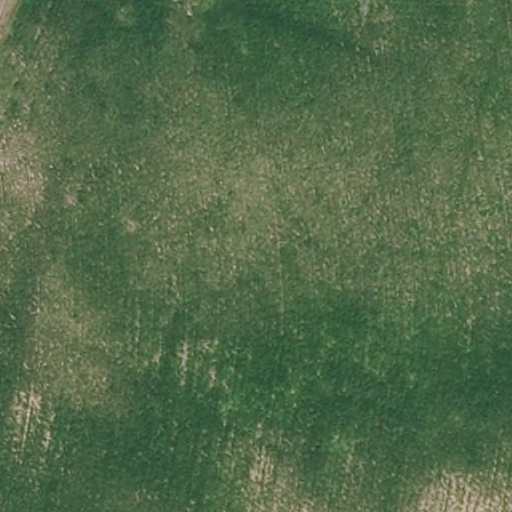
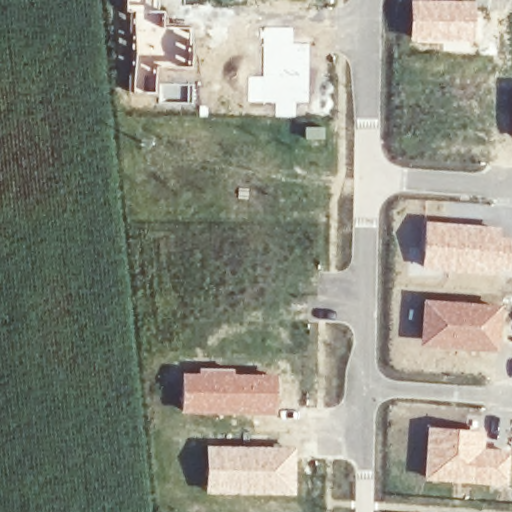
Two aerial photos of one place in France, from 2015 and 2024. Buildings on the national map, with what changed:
new [(152,66),(151,93),(129,92),(131,52),(130,12),(121,11),(122,0),(153,0),(152,10),(159,11),(160,11),(159,27),(185,28),(187,67),(152,66)]
new [(407,40),(408,0),(440,0),(472,0),(470,42),(407,40)]
new [(306,102),(293,102),(293,116),(274,115),(274,101),(261,100),(262,28),(290,28),(290,44),(306,44),(306,102)]
new [(491,269),(491,276),(420,268),(423,221),(499,227),(498,237),(512,238),(512,252),(510,271),(491,269)]
new [(416,345),(420,299),(498,306),(495,352),(416,345)]
new [(272,415),(180,413),(180,373),(198,373),(198,368),(231,369),(231,374),(275,374),(272,415)]
new [(508,450),(505,486),(421,480),(425,426),(484,432),(482,448),(508,450)]
new [(293,495),(204,493),(205,446),(295,447),(293,495)]

